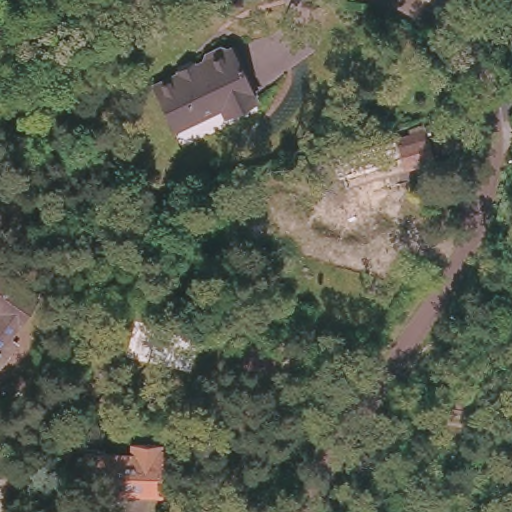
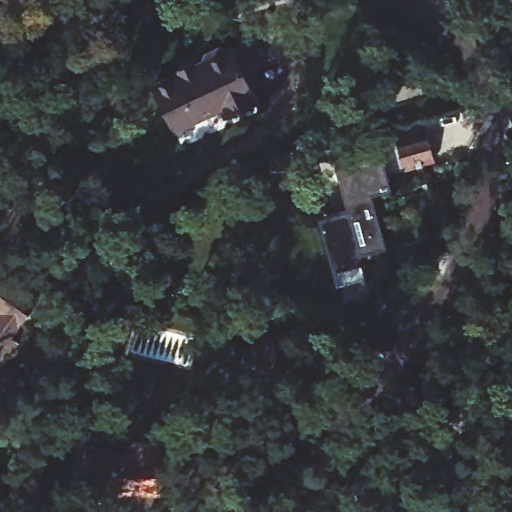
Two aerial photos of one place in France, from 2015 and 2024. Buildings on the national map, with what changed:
unchanged [(225,114),(222,105),(177,127),(155,80),(227,48),(230,46),(255,99),(230,112),(225,114)]
unchanged [(425,130),(432,160),(343,186),(335,156),(425,130)]
new [(389,186),(369,193),(384,247),(357,254),(365,276),(337,284),(319,217),(347,210),(343,186),(387,174),(389,186)]
unchanged [(37,294),(2,348),(7,351),(0,362),(0,270),(37,294)]
unchanged [(279,331),(272,357),(240,349),(246,323),(279,331)]
unchanged [(92,441),(139,444),(139,434),(165,437),(162,489),(152,489),(109,487),(109,484),(89,483),(92,441)]

